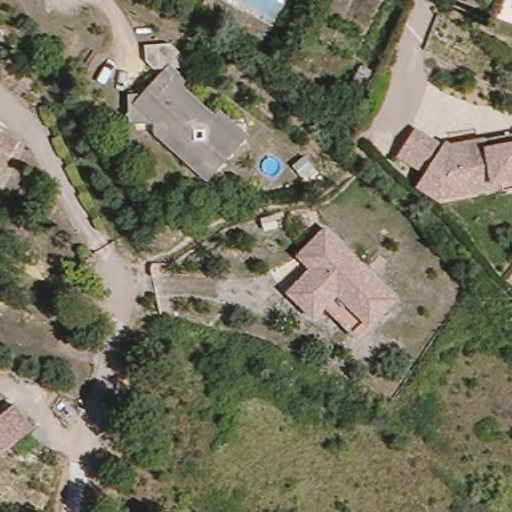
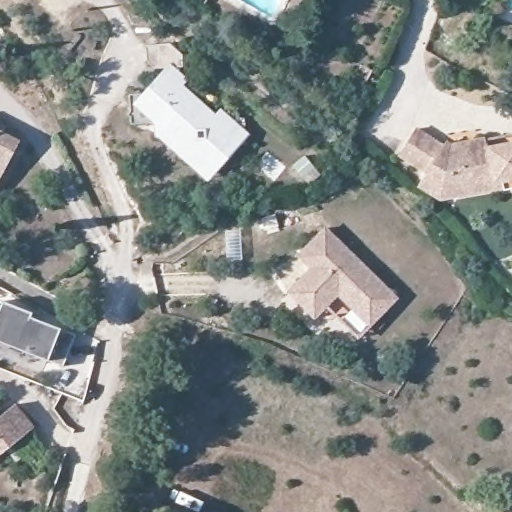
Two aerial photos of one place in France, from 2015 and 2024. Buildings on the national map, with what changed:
unchanged [(307,2),(301,0),(316,0),(315,4),(307,2)]
unchanged [(179,53),(179,69),(157,70),(143,61),(142,49),(167,45),(179,53)]
unchanged [(128,124),(127,95),(152,94),(153,86),(157,86),(158,79),(174,78),(216,115),(228,126),(242,126),(243,145),(234,146),(234,156),(229,155),(223,156),(220,161),(219,162),(193,160),(132,125),(128,124)]
unchanged [(419,188),(423,180),(426,173),(397,158),(410,131),(439,146),(447,149),(472,145),(475,139),(512,133),(512,178),(491,182),(487,189),(454,194),(439,198),(419,188)]
unchanged [(0,176),(0,140),(15,149),(0,176)]
unchanged [(318,194),(308,205),(297,194),(308,184),(318,194)]
unchanged [(329,307),(318,319),(293,293),(304,281),(316,269),(302,256),(328,231),(398,303),(372,329),(361,339),(329,307)]
new [(24,320),(38,327),(40,322),(70,334),(56,367),(40,360),(41,358),(0,340),(0,299),(28,312),(24,320)]
unchanged [(33,430),(0,456),(0,416),(15,406),(33,430)]

